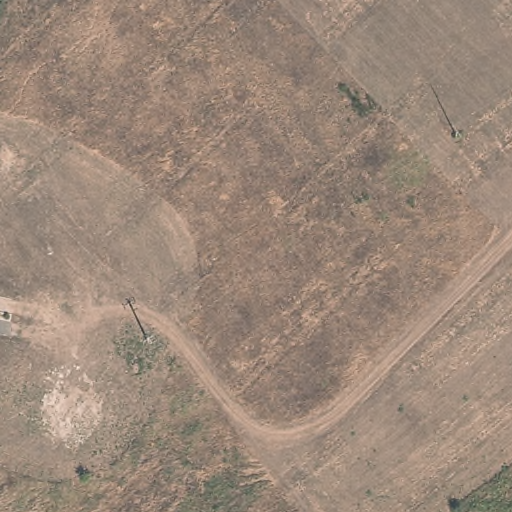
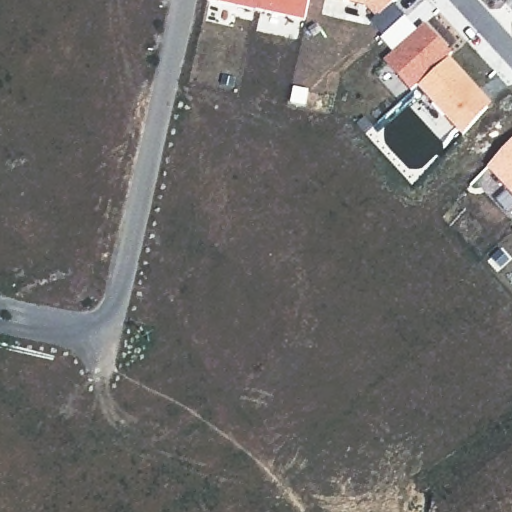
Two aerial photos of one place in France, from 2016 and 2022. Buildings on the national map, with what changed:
new [(208,2),(208,0),(308,0),(302,23),(208,2)]
new [(383,38),(371,24),(376,19),(365,7),(333,0),(399,0),(392,5),(405,19),(417,33),(425,25),(452,56),(411,93),(384,63),(394,54),(381,40),(383,38)]
new [(448,59),(491,106),(461,136),(417,88),(448,59)]
new [(488,168),(512,142),(512,193),(488,168)]

